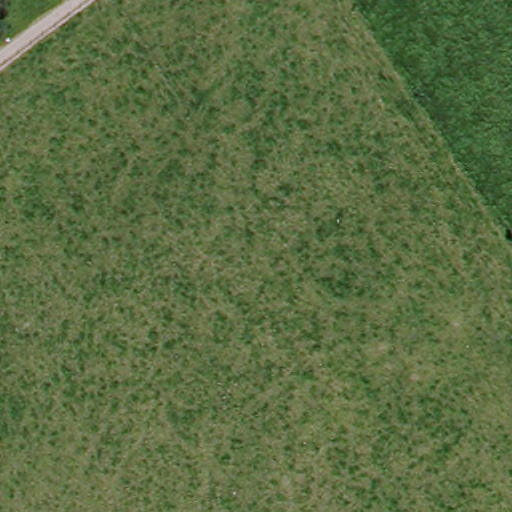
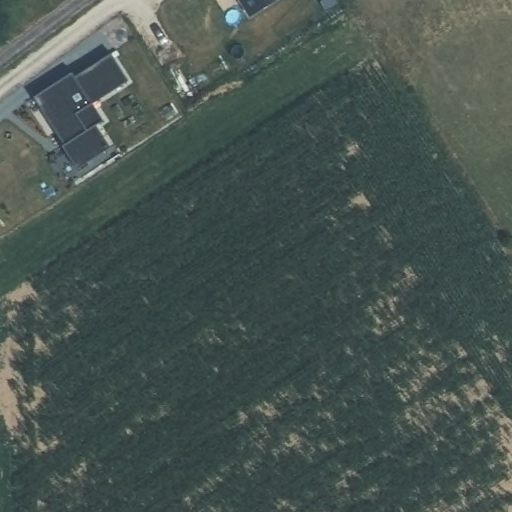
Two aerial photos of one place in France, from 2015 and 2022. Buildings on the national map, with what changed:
new [(250,16),(240,0),(274,0),(250,16)]
new [(127,80),(92,102),(102,121),(96,125),(109,146),(76,168),(62,146),(64,144),(34,95),(72,72),(75,77),(110,52),(127,80)]

